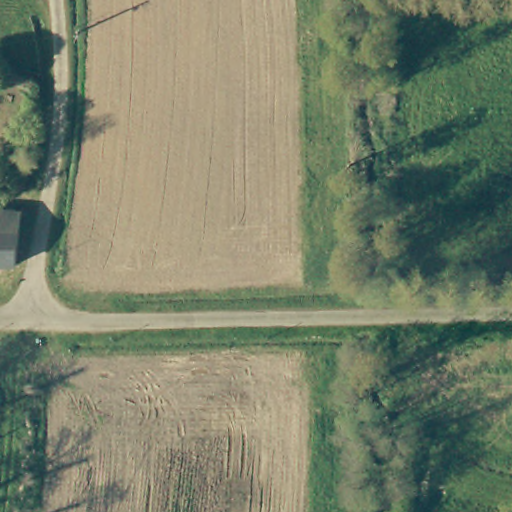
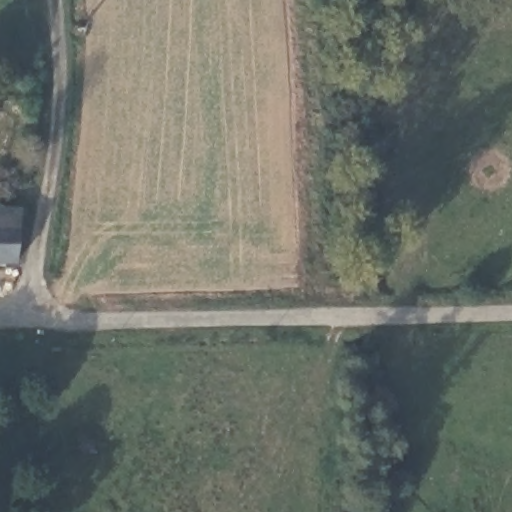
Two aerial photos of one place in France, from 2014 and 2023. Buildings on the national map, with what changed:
unchanged [(0,260),(0,206),(23,207),(16,259),(0,260)]
unchanged [(416,397),(420,422),(404,424),(400,399),(416,397)]

